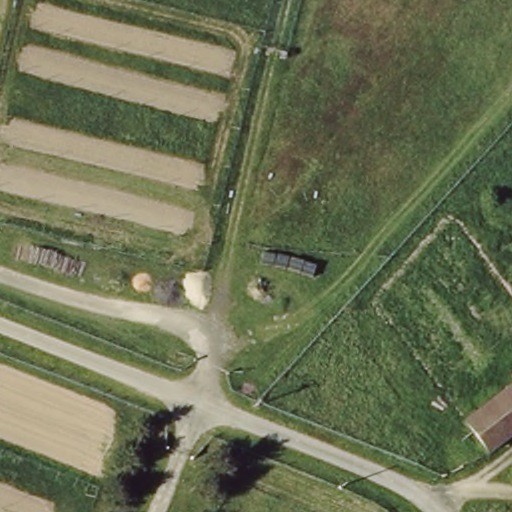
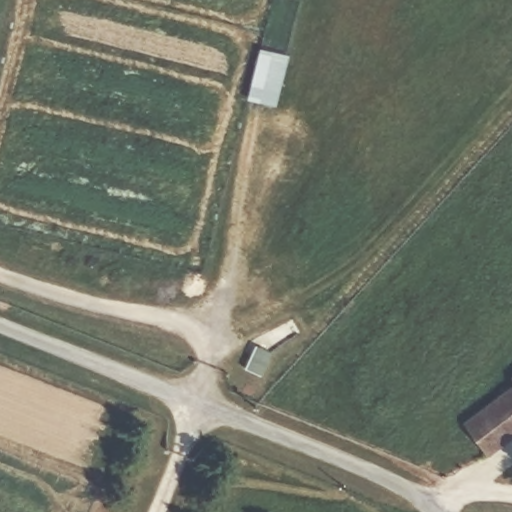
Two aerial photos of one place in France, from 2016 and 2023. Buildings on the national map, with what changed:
new [(248,100),(260,47),(291,55),(279,106),(248,100)]
unchanged [(512,447),(492,464),(469,437),(512,402),(512,447)]

